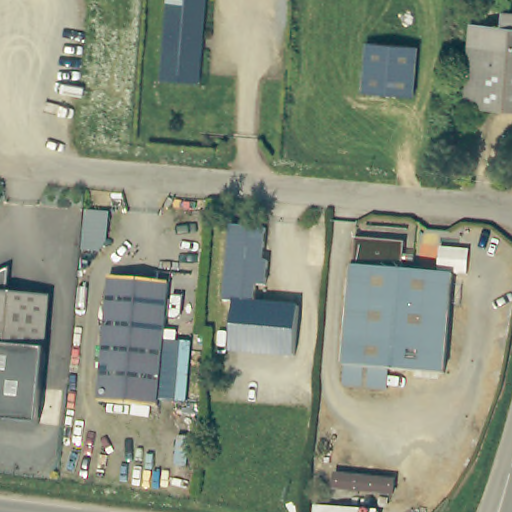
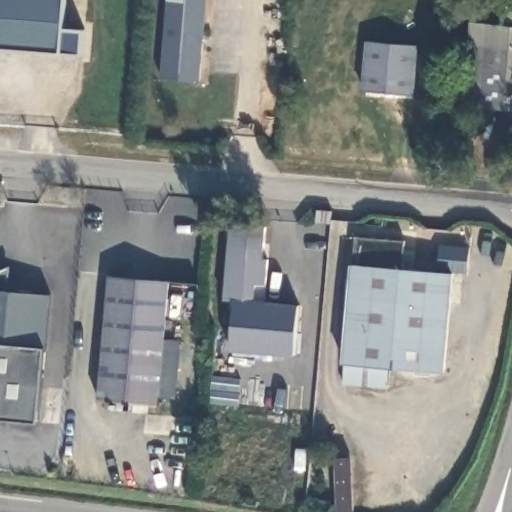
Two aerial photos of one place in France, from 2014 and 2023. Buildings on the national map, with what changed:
new [(85,29),(83,56),(0,50),(0,0),(67,0),(64,28),(85,29)]
unchanged [(198,80),(159,77),(165,0),(204,0),(198,80)]
unchanged [(466,16),(498,19),(499,5),(512,6),(512,104),(459,100),(466,16)]
unchanged [(415,44),(411,94),(361,89),(365,40),(415,44)]
unchanged [(262,263),(269,264),(268,288),(257,287),(256,307),(295,310),(293,360),(229,356),(232,305),(224,304),(229,229),(263,230),(262,263)]
unchanged [(402,272),(451,276),(442,377),(388,372),(387,393),(343,389),(354,239),(403,244),(402,272)]
unchanged [(165,410),(104,405),(115,280),(175,285),(165,410)]
unchanged [(38,418),(0,416),(0,288),(46,291),(43,343),(38,418)]

